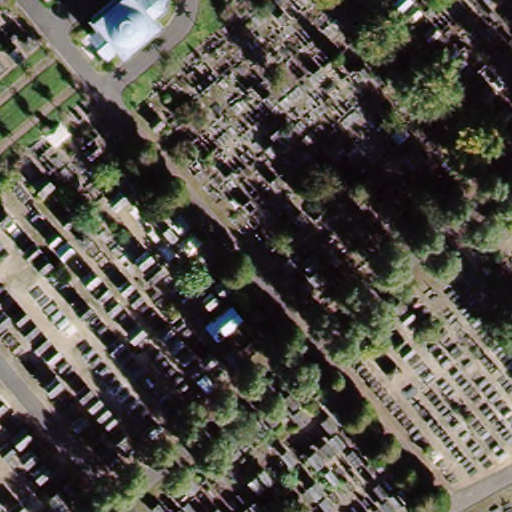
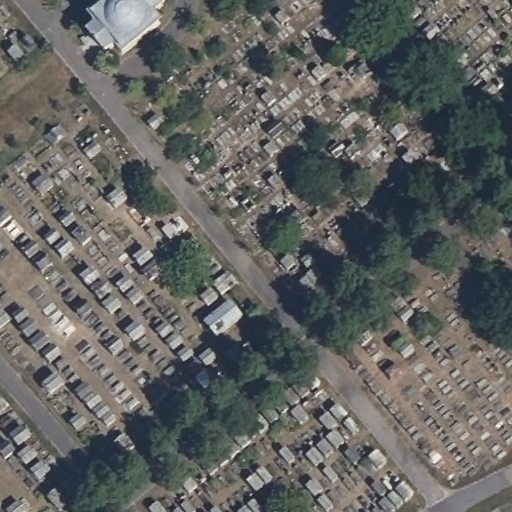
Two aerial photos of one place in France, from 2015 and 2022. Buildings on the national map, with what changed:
unchanged [(166,1),(169,5),(161,12),(166,19),(127,52),(120,46),(101,63),(77,37),(98,19),(93,14),(108,0),(167,0),(166,1)]

